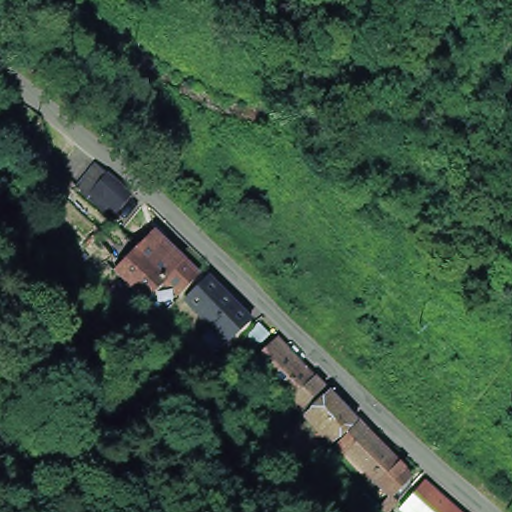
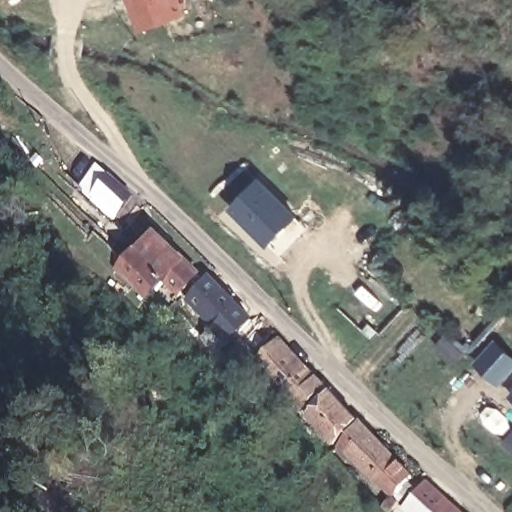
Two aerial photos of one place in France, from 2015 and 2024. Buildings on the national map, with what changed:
new [(126,0),(178,0),(185,16),(140,32),(126,0)]
unchanged [(80,184),(97,166),(130,195),(109,217),(80,184)]
new [(231,210),(260,179),(295,219),(267,248),(231,210)]
unchanged [(159,287),(145,300),(115,270),(153,232),(197,275),(175,296),(174,295),(170,300),(159,287)]
unchanged [(184,300),(207,277),(250,321),(227,342),(184,300)]
unchanged [(252,352),(240,341),(258,323),(269,335),(252,352)]
unchanged [(300,408),(297,405),(294,407),(289,401),(253,363),(277,339),(315,377),(325,388),(300,408)]
unchanged [(355,421),(330,445),(303,416),(329,392),(355,421)]
unchanged [(335,447),(359,422),(410,477),(393,493),(375,473),(366,480),(335,447)]
unchanged [(425,483),(457,512),(407,512),(402,507),(425,483)]
unchanged [(397,503),(390,512),(384,512),(380,508),(391,497),(397,503)]

